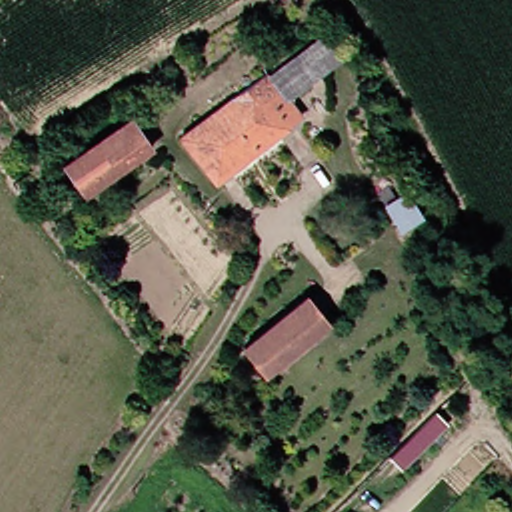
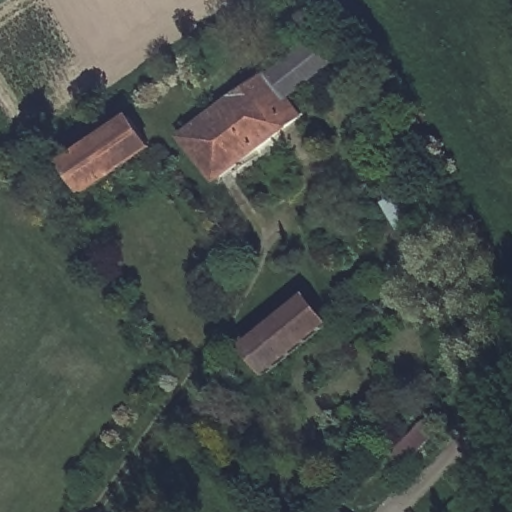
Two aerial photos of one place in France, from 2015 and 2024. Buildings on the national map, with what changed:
unchanged [(281,102),(292,116),(205,184),(175,144),(311,37),(331,63),(281,102)]
unchanged [(76,198),(54,164),(123,118),(145,151),(76,198)]
unchanged [(256,372),(235,346),(297,296),(322,326),(256,372)]
unchanged [(445,428),(402,466),(390,452),(432,414),(445,428)]

